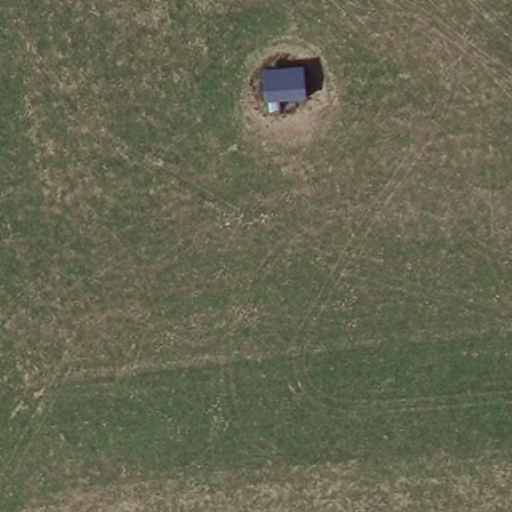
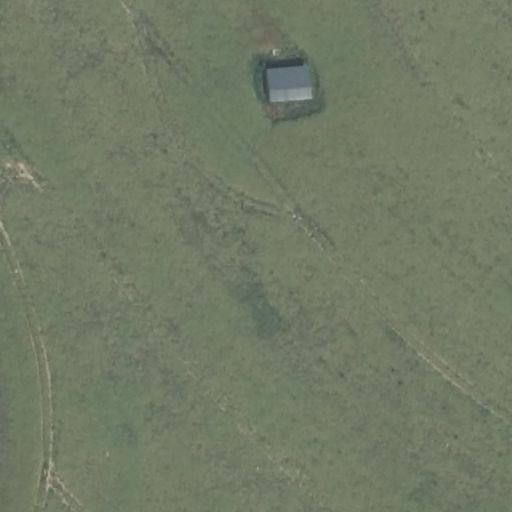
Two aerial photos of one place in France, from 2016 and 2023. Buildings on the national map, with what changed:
unchanged [(303,76),(306,105),(267,109),(264,80),(303,76)]

